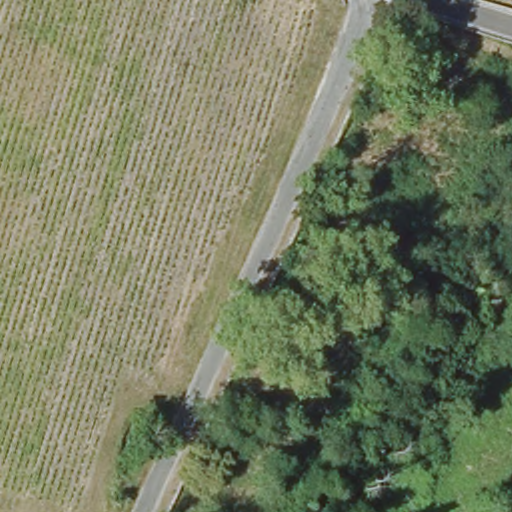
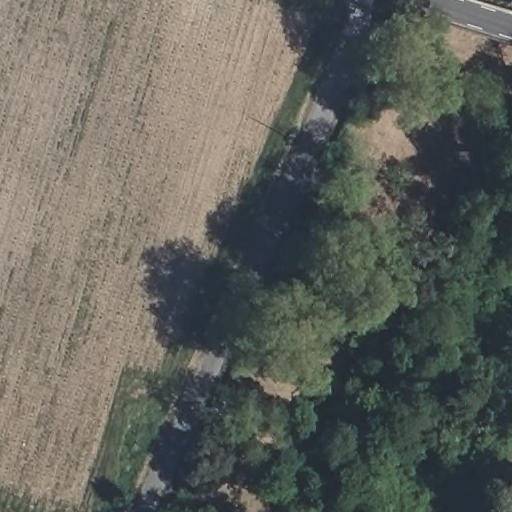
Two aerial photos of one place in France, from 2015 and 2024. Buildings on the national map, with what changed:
[]

